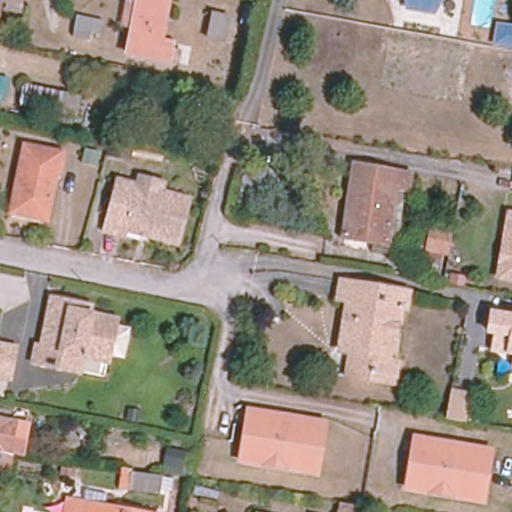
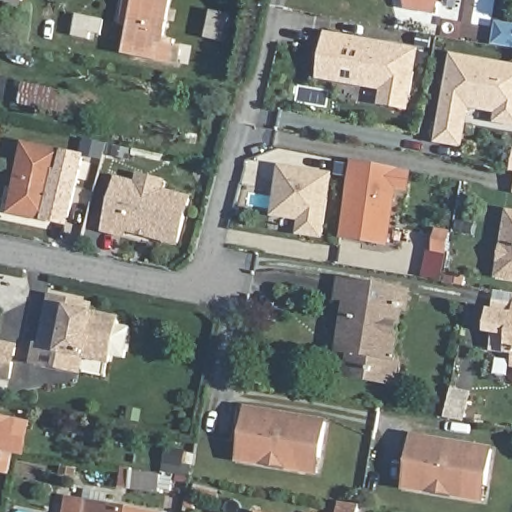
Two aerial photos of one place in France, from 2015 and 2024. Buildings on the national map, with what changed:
unchanged [(17,13),(4,11),(6,1),(1,0),(19,0),(17,13)]
unchanged [(164,38),(175,40),(171,61),(129,53),(134,26),(124,24),(128,0),(129,0),(138,1),(138,0),(171,0),(164,38)]
unchanged [(434,13),(404,8),(405,0),(437,0),(434,13)]
unchanged [(243,23),(248,5),(256,7),(251,25),(243,23)]
unchanged [(226,41),(209,37),(215,13),(231,16),(226,41)]
unchanged [(106,20),(103,35),(93,33),(91,40),(75,36),(79,15),(106,20)]
new [(410,110),(379,104),(382,90),(317,78),(326,30),(421,48),(410,110)]
unchanged [(9,41),(0,40),(0,33),(10,35),(9,41)]
new [(498,114),(472,108),(465,148),(436,142),(453,52),(512,63),(512,126),(496,122),(498,114)]
demolished [(460,88),(451,87),(454,69),(463,71),(460,88)]
unchanged [(78,116),(23,104),(27,85),(82,96),(78,116)]
unchanged [(65,154),(61,172),(58,172),(48,219),(15,212),(20,193),(17,192),(27,146),(65,154)]
unchanged [(111,147),(122,149),(121,157),(109,154),(111,147)]
unchanged [(406,176),(403,192),(398,191),(391,242),(342,235),(351,168),(406,176)]
unchanged [(191,199),(179,243),(127,229),(126,235),(107,230),(121,180),(191,199)]
unchanged [(507,209),(512,210),(512,280),(496,277),(507,209)]
unchanged [(461,256),(450,254),(429,250),(433,229),(454,233),(465,235),(461,256)]
unchanged [(406,294),(404,309),(398,309),(391,359),(395,360),(392,383),(351,377),(355,354),(336,350),(344,300),(335,299),(338,283),(406,294)]
unchanged [(109,325),(124,328),(118,358),(103,354),(102,360),(64,352),(60,368),(31,362),(33,346),(38,347),(49,298),(88,306),(86,314),(110,319),(109,325)]
unchanged [(493,333),(487,331),(492,308),(512,311),(512,354),(491,349),(493,333)]
unchanged [(0,400),(0,346),(12,348),(6,378),(2,400),(0,400)]
new [(452,391),(472,395),(467,422),(447,419),(452,391)]
unchanged [(279,411),(268,470),(237,464),(249,405),(279,411)]
unchanged [(329,421),(318,480),(268,470),(279,411),(329,421)]
unchanged [(16,422),(6,471),(0,470),(0,419),(16,422)]
unchanged [(495,448),(485,504),(404,490),(414,434),(495,448)]
unchanged [(174,491),(163,490),(163,493),(130,489),(132,471),(165,476),(165,477),(175,479),(174,491)]
unchanged [(62,512),(66,497),(144,512),(62,512)]
unchanged [(336,512),(338,503),(358,507),(356,512),(336,512)]

